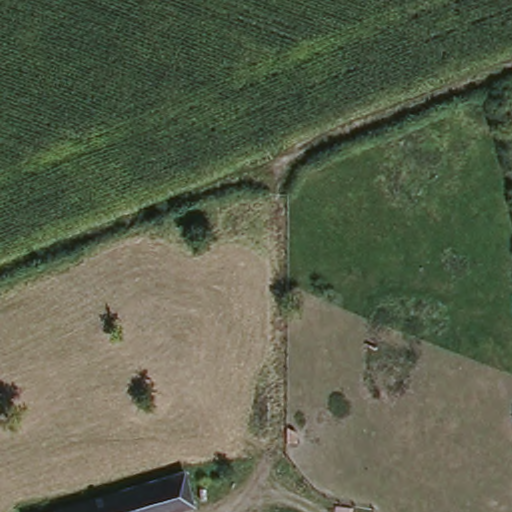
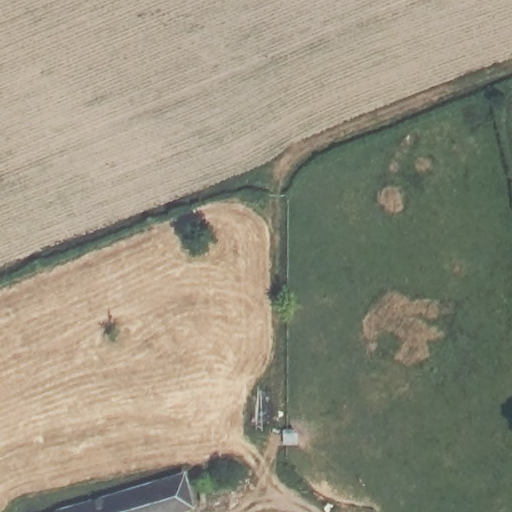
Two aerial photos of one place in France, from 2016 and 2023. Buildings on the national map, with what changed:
unchanged [(191,510),(186,512),(59,512),(180,475),(191,510)]

